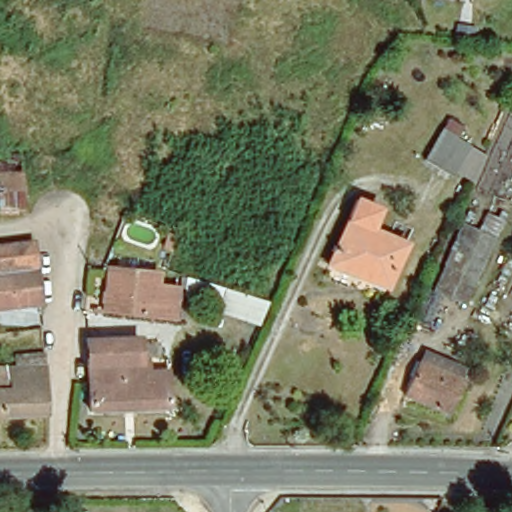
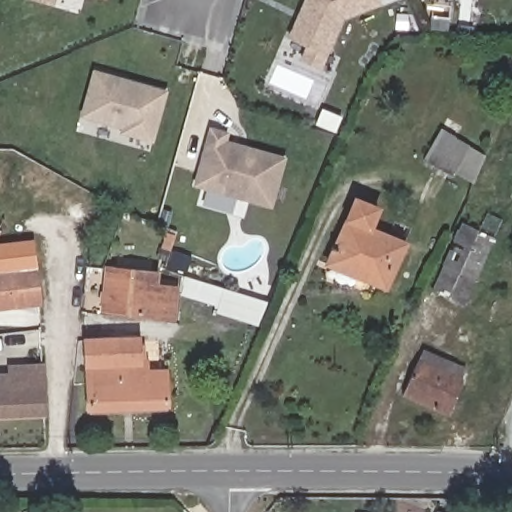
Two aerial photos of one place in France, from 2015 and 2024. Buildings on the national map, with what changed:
new [(40,0),(55,0),(54,4),(40,0)]
new [(288,37),(305,0),(382,0),(384,4),(344,19),(323,69),(299,60),(306,45),(288,37)]
new [(94,71),(164,91),(150,138),(122,130),(123,125),(82,114),(94,71)]
unchanged [(477,181),(459,170),(457,173),(430,157),(452,118),(467,127),(461,137),(473,145),(472,147),(488,156),(477,181)]
new [(287,156),(272,207),(194,185),(210,127),(229,132),(228,140),(287,156)]
demolished [(23,157),(24,209),(21,209),(0,211),(0,158),(23,157)]
unchanged [(376,202),(368,221),(406,237),(388,282),(362,272),(364,267),(330,253),(355,193),(376,202)]
unchanged [(441,296),(426,329),(415,323),(463,224),(479,233),(488,214),(504,221),(465,307),(441,296)]
unchanged [(173,232),(169,246),(160,244),(165,229),(173,232)]
unchanged [(31,236),(39,297),(0,302),(0,240),(31,236)]
unchanged [(107,263),(153,270),(153,283),(172,286),(169,313),(102,305),(106,268),(107,263)]
unchanged [(183,304),(188,276),(235,291),(269,303),(259,327),(227,316),(183,304)]
unchanged [(137,336),(139,361),(145,361),(146,371),(165,371),(166,404),(89,407),(87,339),(137,336)]
unchanged [(400,394),(415,362),(421,347),(463,366),(457,380),(443,413),(400,394)]
unchanged [(11,366),(11,356),(42,355),(45,402),(0,405),(0,367),(11,366)]

